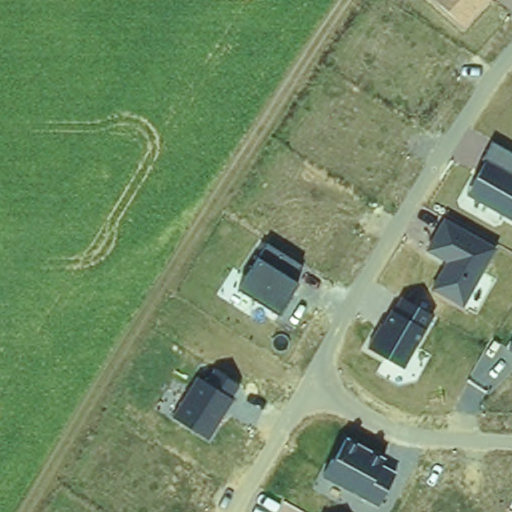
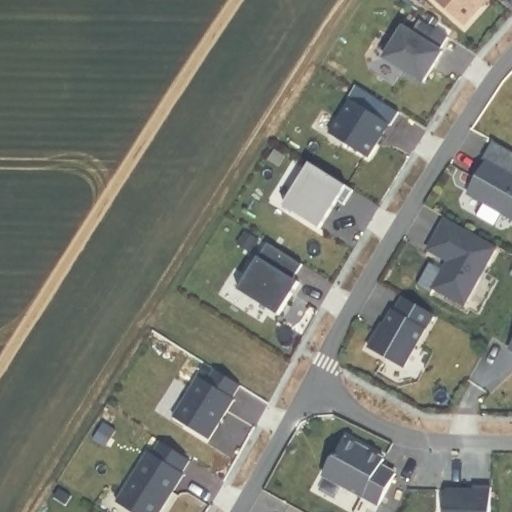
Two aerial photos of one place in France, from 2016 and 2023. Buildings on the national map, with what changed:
unchanged [(434,0),(489,0),(467,25),(434,0)]
new [(449,36),(440,49),(443,51),(424,81),(385,56),(405,26),(415,32),(422,19),(449,36)]
new [(398,111),(391,123),(388,121),(367,156),(330,133),(351,98),(348,96),(356,83),(398,111)]
unchanged [(465,194),(493,144),(512,154),(512,220),(465,194)]
new [(354,189),(345,203),(338,199),(321,227),(286,204),(312,162),(354,189)]
unchanged [(463,307),(432,289),(447,262),(425,250),(443,216),(496,247),(463,307)]
unchanged [(277,315),(237,288),(258,257),(266,245),(300,266),(291,279),(298,283),(277,315)]
unchanged [(402,369),(366,348),(387,310),(391,312),(399,298),(433,316),(402,369)]
unchanged [(507,349),(512,340),(512,352),(507,349)]
unchanged [(234,400),(209,437),(172,417),(195,376),(205,381),(212,369),(240,385),(234,400)]
unchanged [(378,505),(325,476),(346,437),(387,458),(381,466),(395,474),(378,505)]
new [(190,457),(181,470),(184,472),(157,512),(136,512),(116,499),(149,449),(152,452),(160,439),(190,457)]
new [(473,488),(473,485),(491,487),(491,512),(445,512),(445,488),(473,488)]

